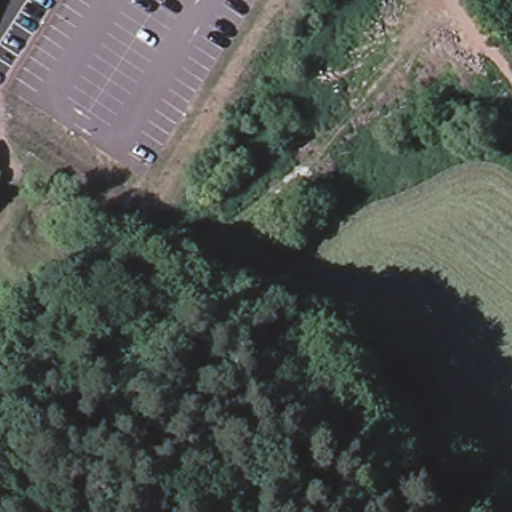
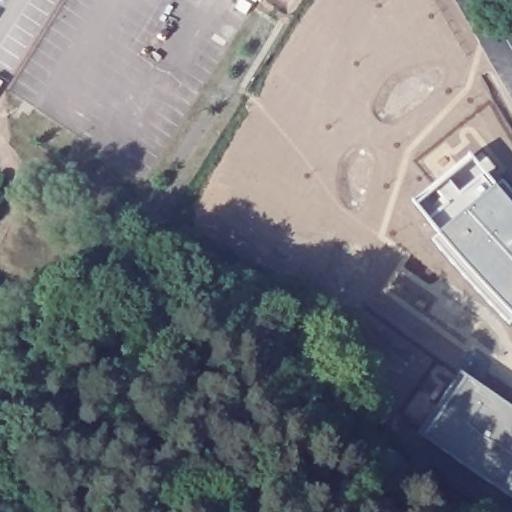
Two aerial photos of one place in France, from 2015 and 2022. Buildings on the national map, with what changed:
new [(512,201),(512,311),(455,249),(415,201),(472,156),(498,186),(512,201)]
new [(466,375),(512,407),(512,500),(421,436),(466,375)]

